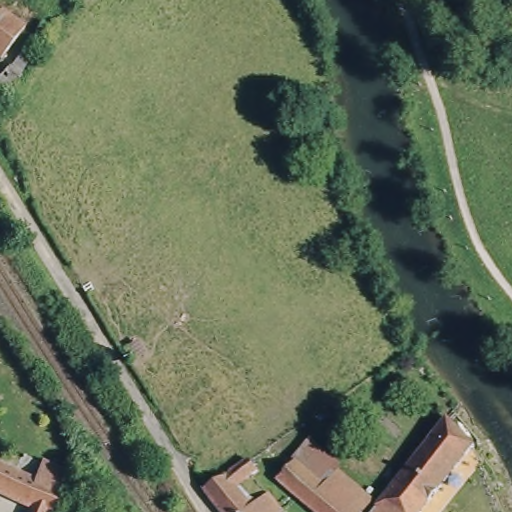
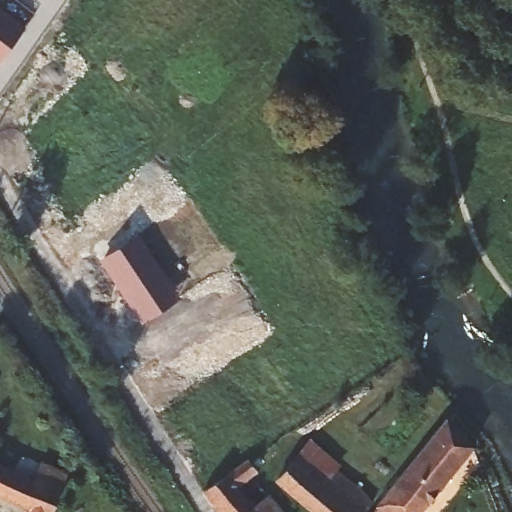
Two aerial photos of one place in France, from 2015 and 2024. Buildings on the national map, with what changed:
unchanged [(22,26),(0,53),(0,8),(22,26)]
demolished [(17,71),(0,89),(0,70),(8,62),(9,62),(39,19),(49,25),(17,71)]
new [(99,260),(138,234),(181,298),(144,322),(99,260)]
unchanged [(422,512),(374,512),(449,421),(478,445),(422,512)]
unchanged [(307,442),(373,501),(364,512),(360,512),(296,456),(307,442)]
unchanged [(208,483),(250,455),(258,466),(236,482),(252,503),(268,490),(282,507),(280,512),(225,512),(204,487),(208,483)]
unchanged [(316,512),(277,477),(296,456),(360,512),(316,512)]
unchanged [(33,478),(40,460),(67,472),(55,512),(27,512),(28,511),(0,498),(0,465),(33,478)]

